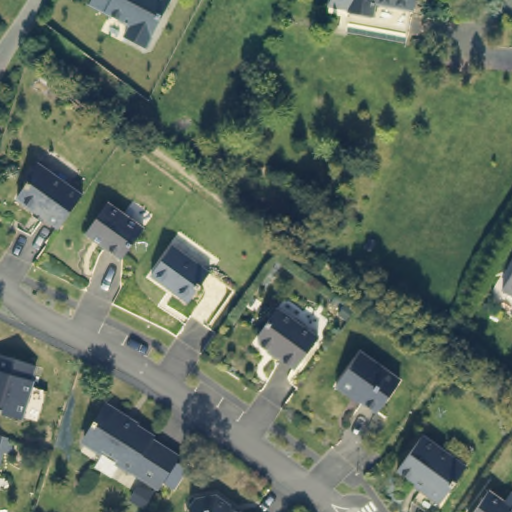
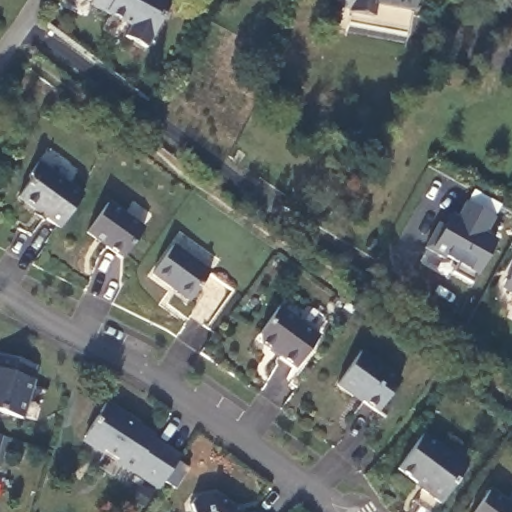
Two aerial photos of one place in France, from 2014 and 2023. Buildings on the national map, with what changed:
unchanged [(132,16),(101,0),(168,0),(148,38),(127,27),(132,16)]
unchanged [(349,4),(330,0),(411,0),(405,33),(346,21),(349,4)]
unchanged [(47,213),(44,217),(35,210),(37,206),(18,192),(32,174),(29,171),(38,159),(84,193),(62,224),(47,213)]
new [(487,235),(497,240),(471,282),(453,272),(457,266),(430,250),(451,213),(457,217),(467,203),(496,218),(487,235)]
unchanged [(143,229),(124,256),(89,232),(109,204),(143,229)]
unchanged [(214,272),(194,300),(157,273),(177,245),(214,272)]
unchanged [(512,296),(503,291),(512,276),(512,296)]
unchanged [(322,337),(300,368),(263,342),(263,334),(282,308),(322,337)]
unchanged [(405,380),(382,411),(358,393),(356,396),(340,385),(366,351),(405,380)]
unchanged [(40,363),(35,377),(37,378),(25,417),(0,409),(0,359),(2,352),(40,363)]
unchanged [(120,464),(122,462),(104,450),(101,454),(87,444),(86,432),(106,403),(127,417),(126,419),(152,437),(151,440),(180,459),(159,491),(120,464)]
unchanged [(470,467),(443,503),(425,490),(427,487),(403,470),(427,436),(470,467)]
unchanged [(189,470),(176,491),(165,484),(179,464),(189,470)]
unchanged [(482,492),(498,503),(505,493),(512,499),(512,512),(468,512),(482,492)]
unchanged [(191,503),(196,497),(217,494),(242,512),(192,512),(191,503)]

